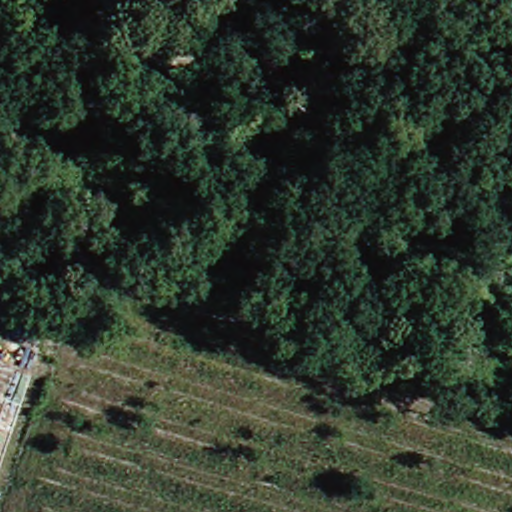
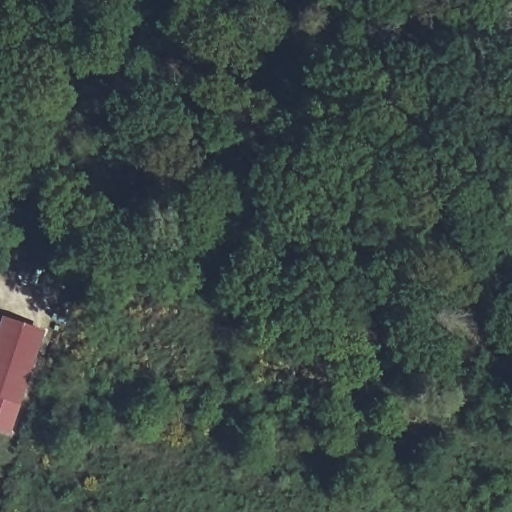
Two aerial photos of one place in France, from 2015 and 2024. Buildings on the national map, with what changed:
new [(47,330),(11,435),(0,432),(0,333),(5,316),(47,330)]

